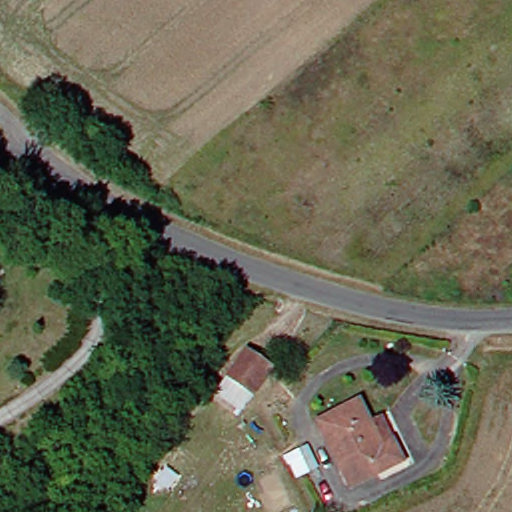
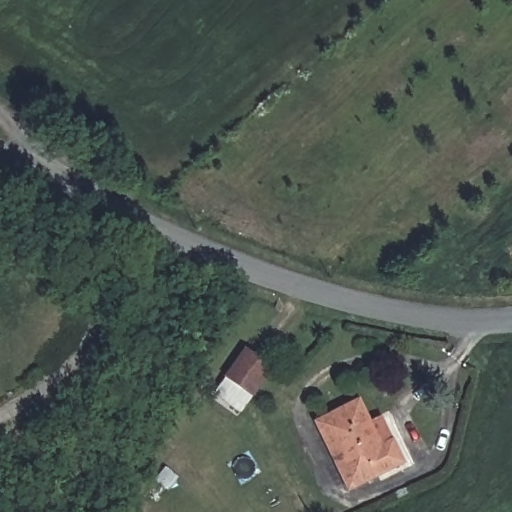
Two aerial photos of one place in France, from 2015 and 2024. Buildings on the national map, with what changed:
unchanged [(273,369),(242,412),(215,392),(247,350),(273,369)]
unchanged [(393,441),(405,462),(350,489),(317,422),(360,400),(372,423),(382,418),(391,437),(393,441)]

